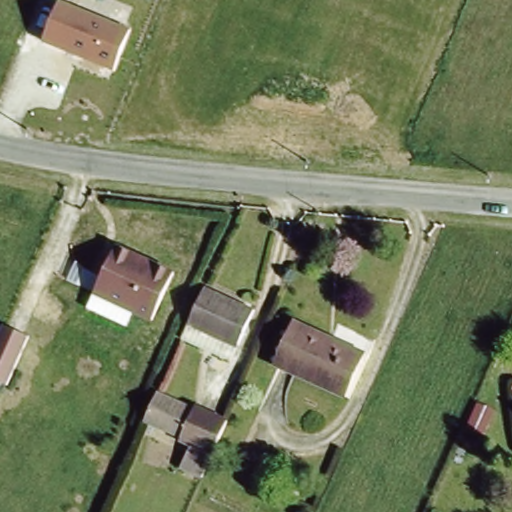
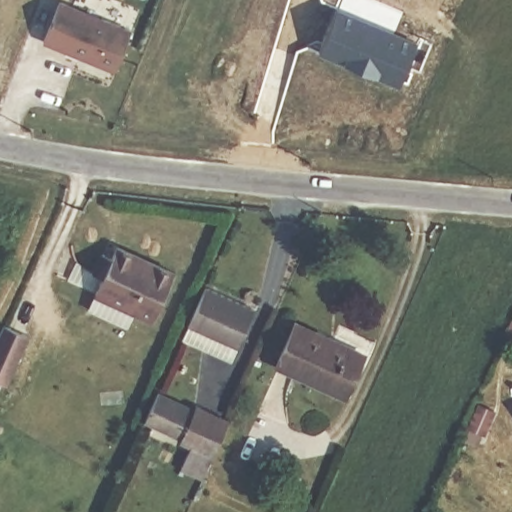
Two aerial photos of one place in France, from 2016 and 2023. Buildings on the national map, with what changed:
unchanged [(133,30),(113,71),(40,42),(60,1),(133,30)]
new [(401,88),(319,54),(338,8),(419,40),(401,88)]
unchanged [(113,245),(172,271),(151,318),(93,293),(100,276),(90,272),(99,252),(108,256),(113,245)]
unchanged [(202,291),(249,312),(233,348),(218,341),(214,352),(181,338),(202,291)]
unchanged [(25,333),(4,383),(0,381),(0,322),(25,333)]
unchanged [(271,367),(289,325),(353,352),(336,394),(271,367)]
unchanged [(159,387),(226,421),(200,471),(179,465),(186,446),(138,424),(159,387)]

